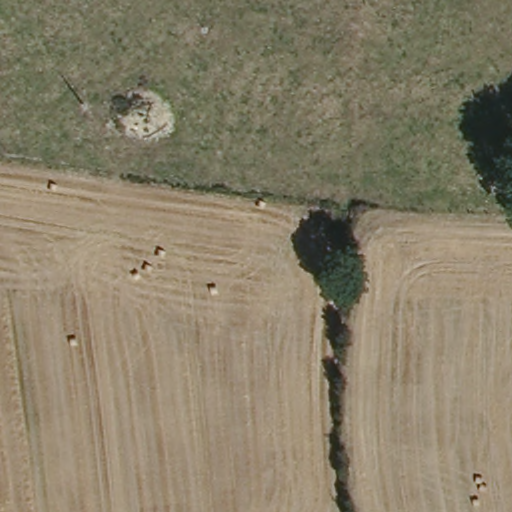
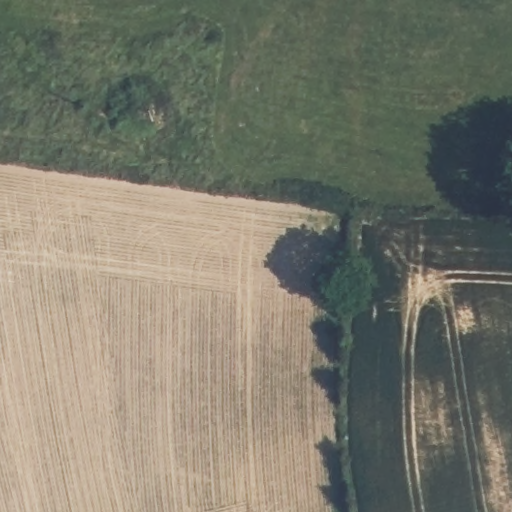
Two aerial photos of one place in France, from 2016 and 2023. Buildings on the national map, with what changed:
unchanged [(175,135),(91,137),(89,109),(172,107),(175,135)]

